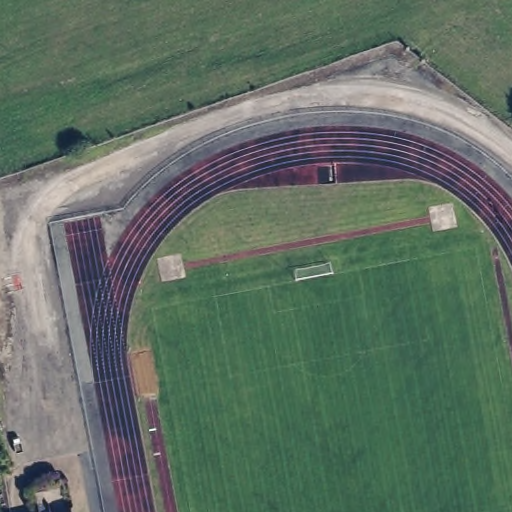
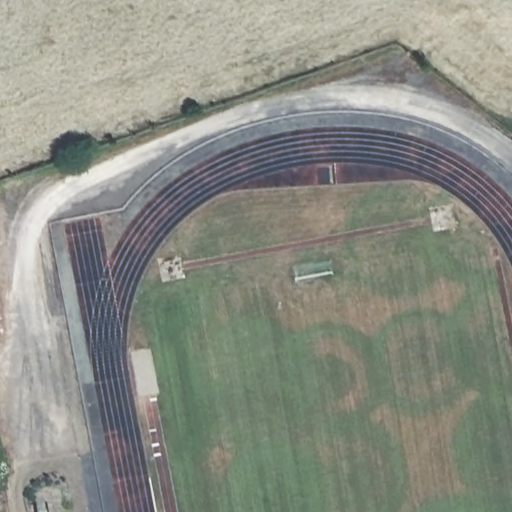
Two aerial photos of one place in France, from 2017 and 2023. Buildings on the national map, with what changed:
unchanged [(48,508),(48,512),(36,512),(36,510),(48,508)]

